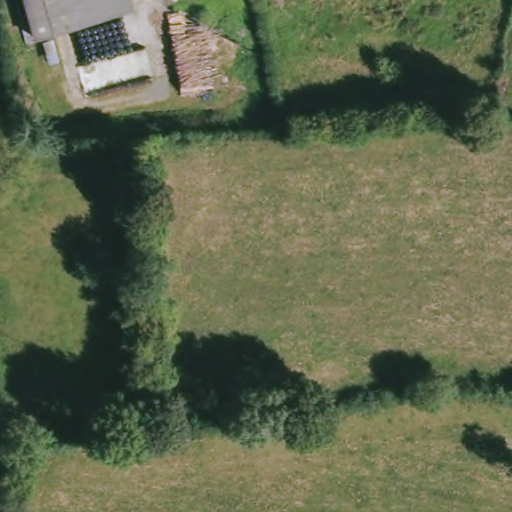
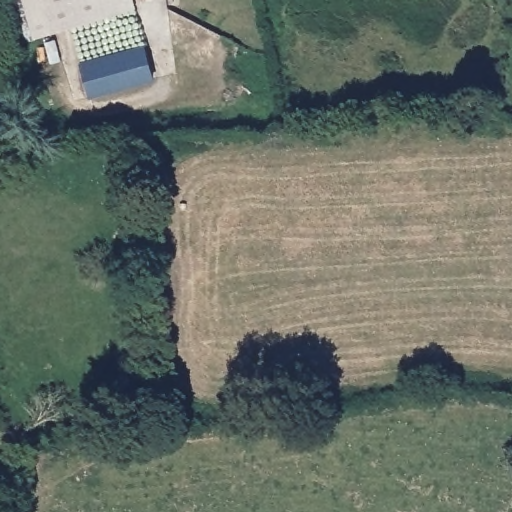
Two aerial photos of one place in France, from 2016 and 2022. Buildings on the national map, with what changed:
unchanged [(35,37),(23,0),(131,0),(133,5),(35,37)]
new [(144,45),(154,81),(90,99),(80,64),(144,45)]

